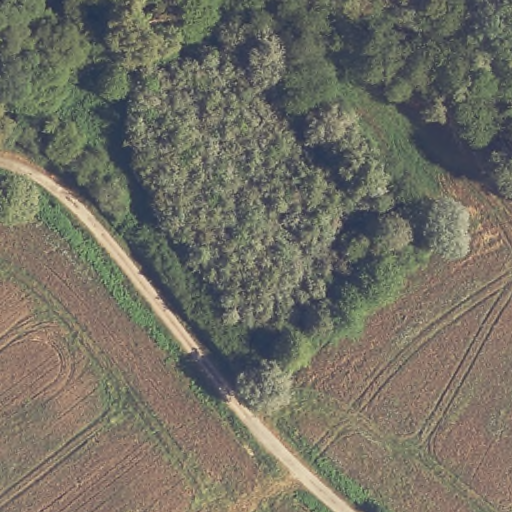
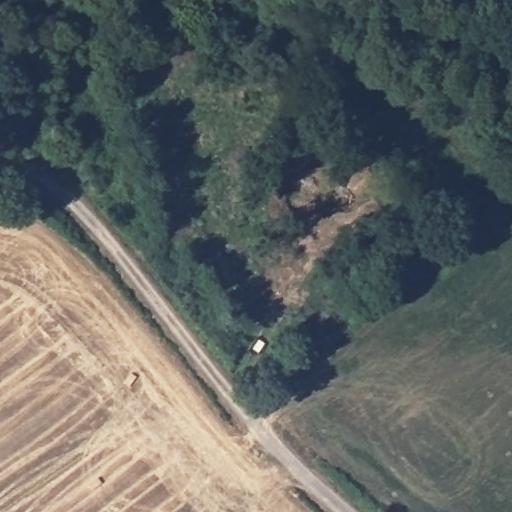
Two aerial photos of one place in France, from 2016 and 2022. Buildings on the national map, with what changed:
[]

